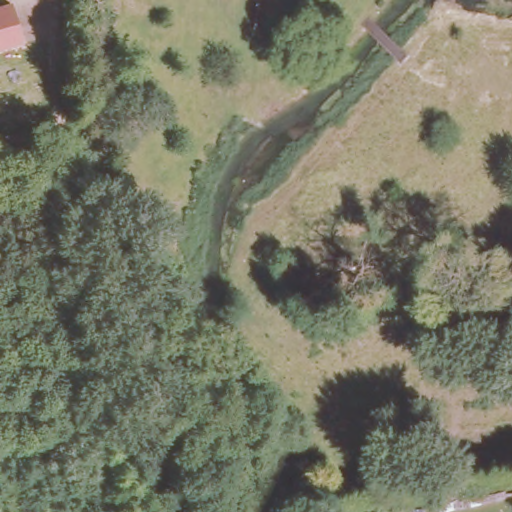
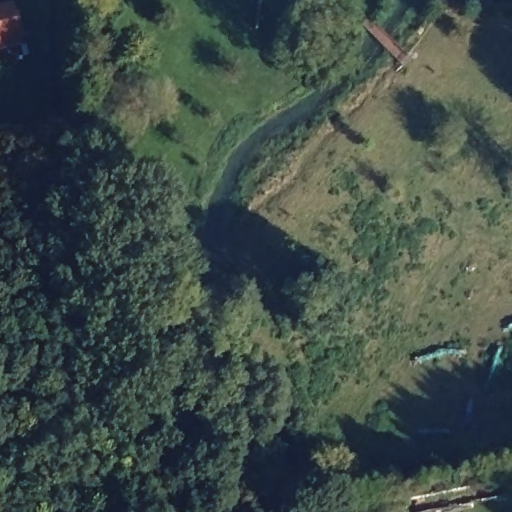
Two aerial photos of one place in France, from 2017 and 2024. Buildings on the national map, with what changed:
unchanged [(12,4),(23,45),(0,51),(0,7),(12,4)]

